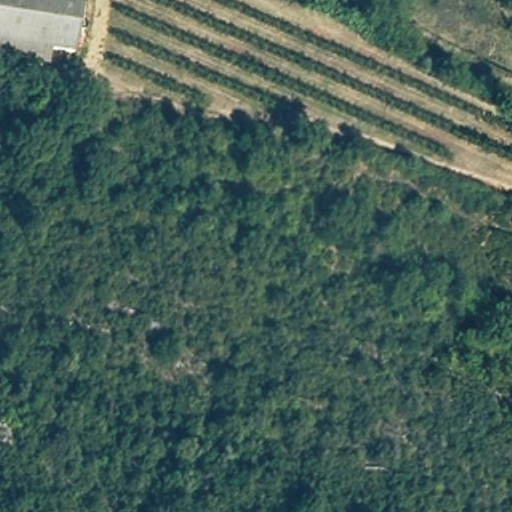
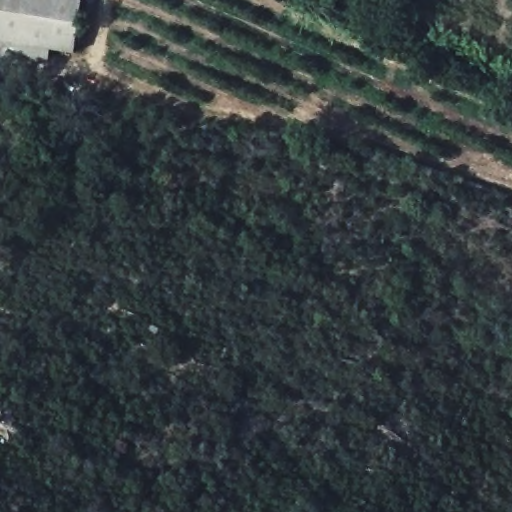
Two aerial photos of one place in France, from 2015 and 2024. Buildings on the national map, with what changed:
unchanged [(49,49),(45,66),(0,57),(0,0),(82,0),(72,54),(49,49)]

